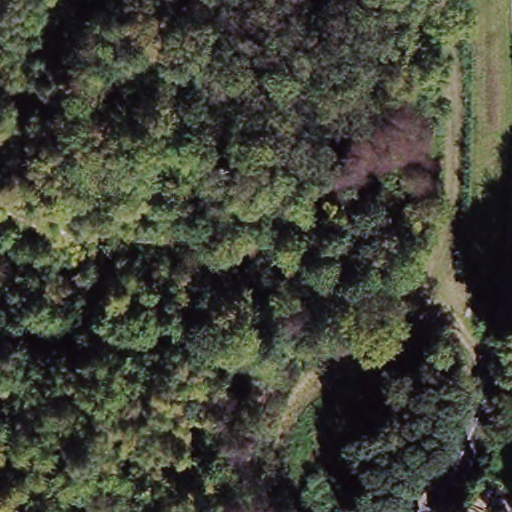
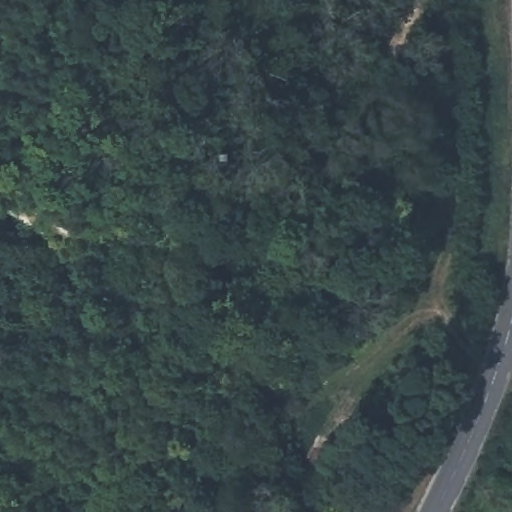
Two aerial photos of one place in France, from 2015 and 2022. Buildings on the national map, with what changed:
unchanged [(492,492),(494,487),(510,494),(500,512),(495,512),(471,504),(478,487),(492,492)]

